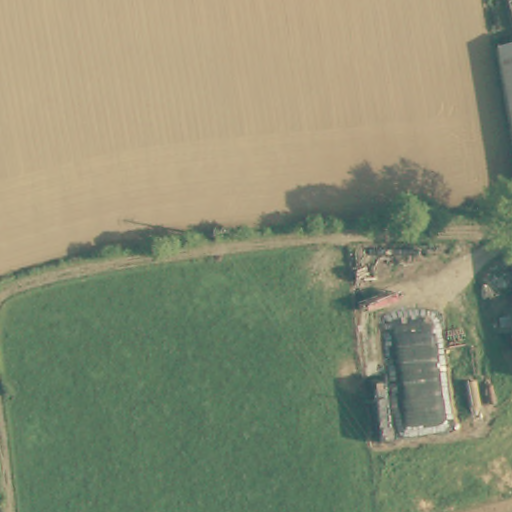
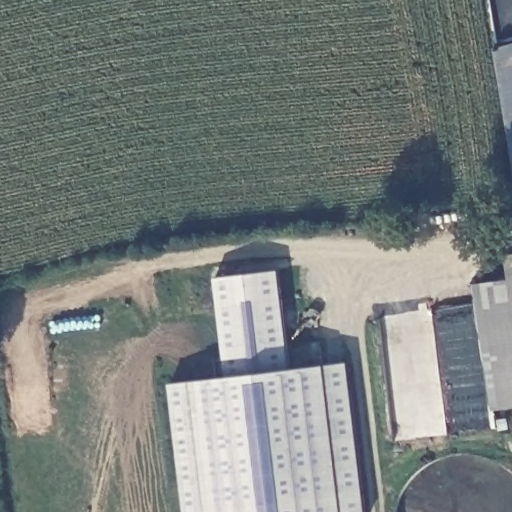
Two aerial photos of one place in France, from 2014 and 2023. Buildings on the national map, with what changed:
unchanged [(512,142),(493,51),(512,46),(512,142)]
unchanged [(512,256),(511,253),(512,253),(512,256)]
new [(226,376),(217,277),(280,269),(292,368),(349,361),(367,512),(186,512),(170,383),(226,376)]
new [(512,407),(495,409),(476,284),(512,278),(512,407)]

